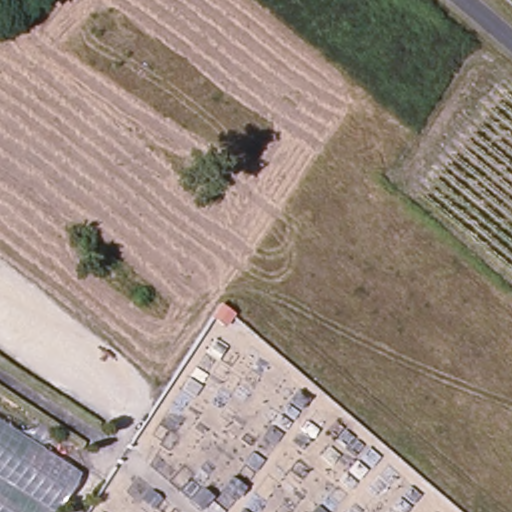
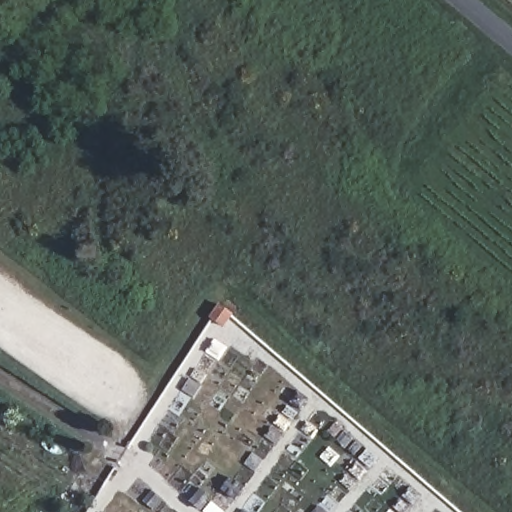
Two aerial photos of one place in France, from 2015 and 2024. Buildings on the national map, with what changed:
demolished [(84,474),(59,512),(0,512),(0,418),(84,474)]

